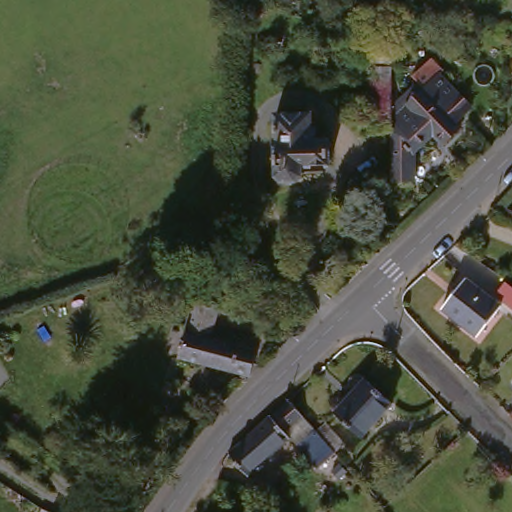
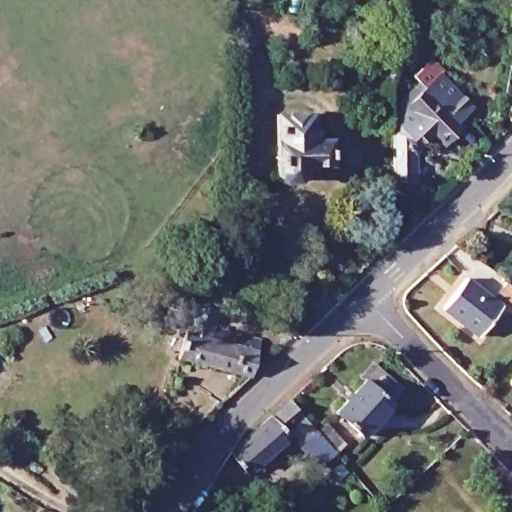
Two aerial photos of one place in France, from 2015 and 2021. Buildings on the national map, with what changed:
unchanged [(436,73),(467,106),(452,121),(457,125),(439,144),(429,133),(409,152),(408,179),(387,179),(388,128),(368,127),(370,97),(370,70),(370,64),(375,64),(376,50),(391,50),(390,70),(388,97),(388,117),(402,105),(401,104),(436,73)]
unchanged [(310,152),(334,151),(335,179),(310,181),(303,190),(297,191),(288,190),(278,182),(277,126),(310,125),(310,152)]
unchanged [(495,316),(467,342),(440,312),(468,287),(495,316)]
unchanged [(512,291),(512,303),(506,297),(512,291)]
unchanged [(215,317),(208,343),(225,347),(228,338),(258,345),(249,385),(174,365),(190,310),(215,317)]
unchanged [(390,412),(360,441),(335,416),(365,387),(390,412)]
unchanged [(287,407),(303,426),(285,443),(289,447),(250,484),(230,464),(236,455),(287,407)]
unchanged [(303,458),(320,445),(325,450),(340,470),(323,482),(308,465),(303,458)]

